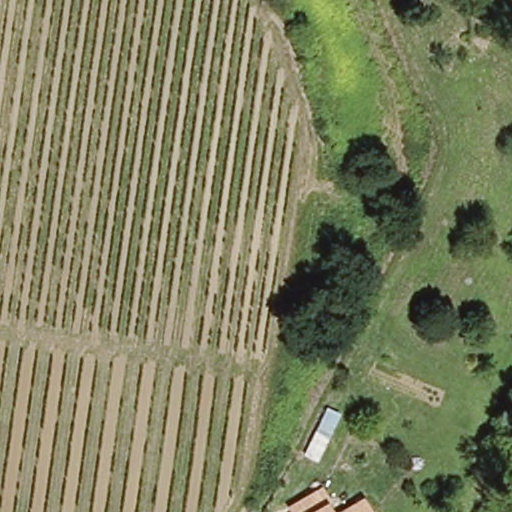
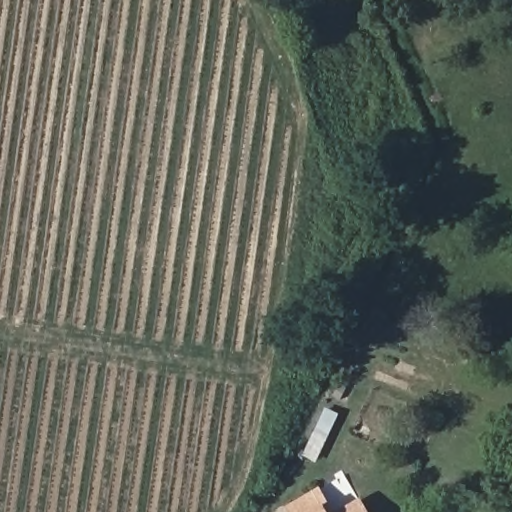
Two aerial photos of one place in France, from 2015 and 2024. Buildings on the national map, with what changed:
unchanged [(317,490),(323,500),(317,505),(322,512),(290,512),(286,507),(317,490)]
unchanged [(363,512),(333,512),(355,499),(363,512)]

